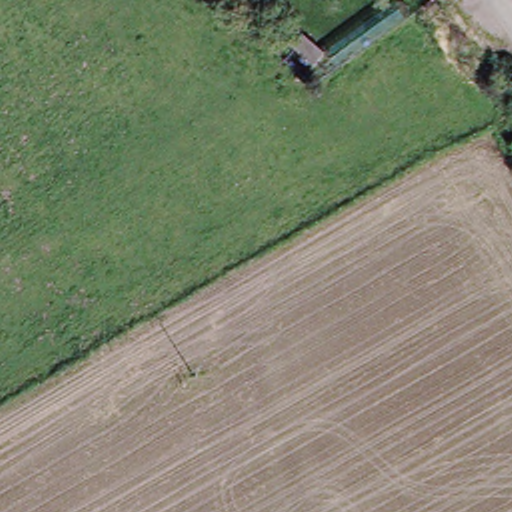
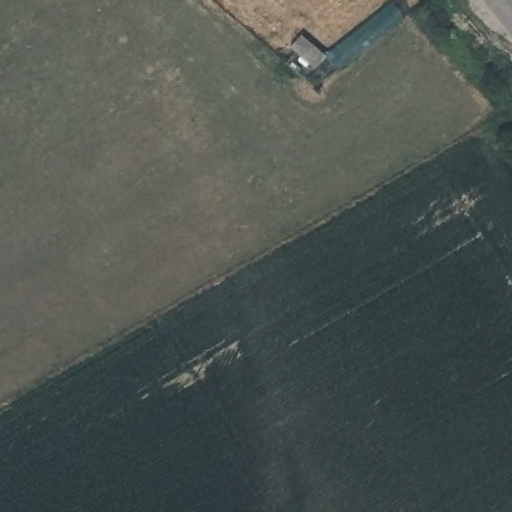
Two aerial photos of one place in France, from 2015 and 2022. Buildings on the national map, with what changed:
unchanged [(407,24),(341,75),(333,66),(317,77),(284,46),(298,38),(332,61),(396,7),(407,24)]

